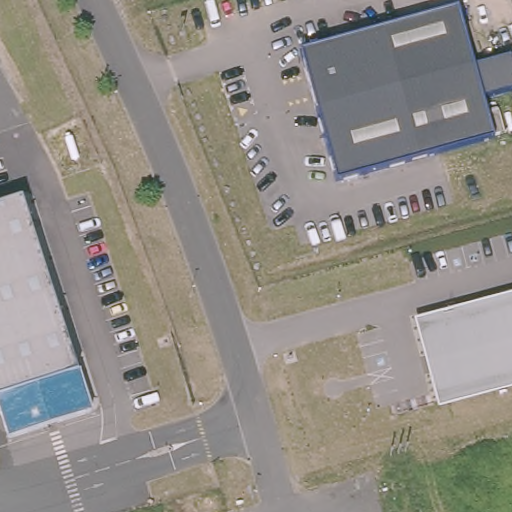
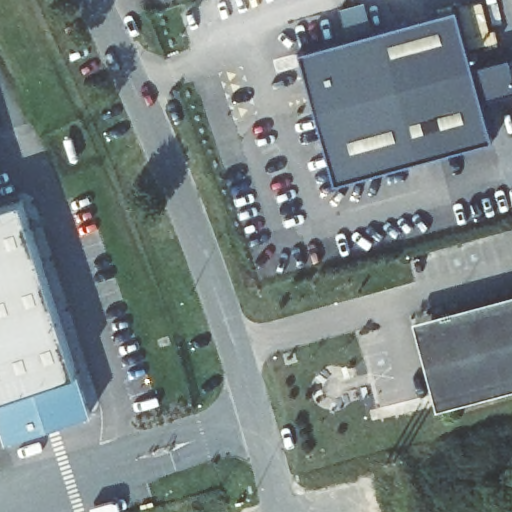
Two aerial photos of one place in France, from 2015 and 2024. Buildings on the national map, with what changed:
unchanged [(456,10),(472,63),(494,134),(344,179),(321,103),(308,56),(456,10)]
unchanged [(88,414),(6,440),(0,421),(0,208),(19,201),(88,414)]
unchanged [(438,409),(414,320),(512,295),(512,390),(438,409)]

